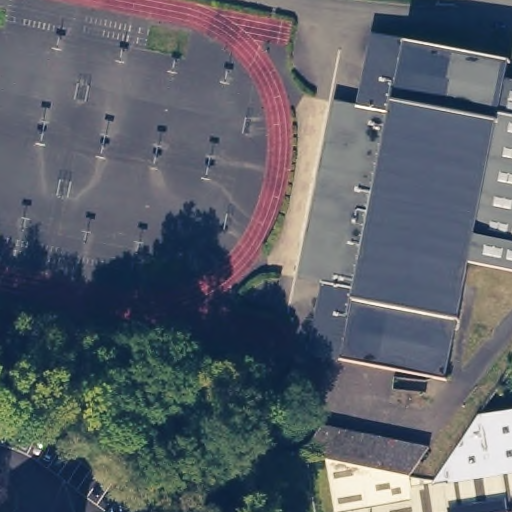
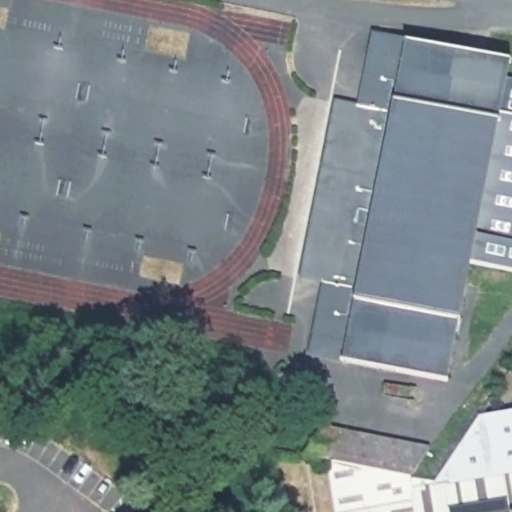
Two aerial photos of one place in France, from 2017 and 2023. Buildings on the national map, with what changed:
unchanged [(509,56),(505,76),(468,259),(445,376),(310,349),(323,277),(301,273),(336,97),(358,101),(373,30),(509,56)]
unchanged [(512,77),(512,267),(468,259),(505,76),(512,77)]
unchanged [(435,481),(480,416),(512,411),(512,508),(484,512),(337,512),(328,461),(410,478),(435,481)]
unchanged [(323,426),(430,449),(410,478),(328,461),(302,455),(323,426)]
unchanged [(512,508),(512,512),(484,512),(512,508)]

